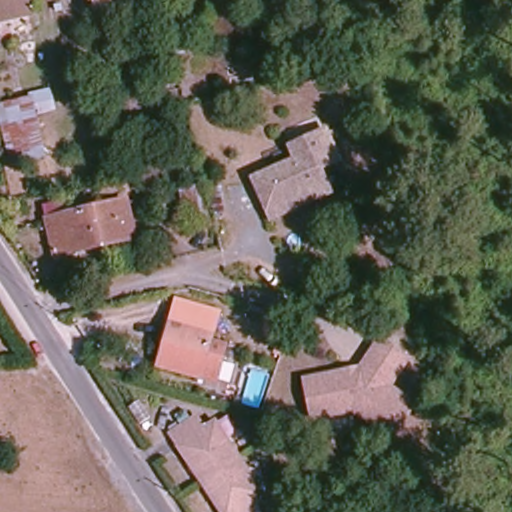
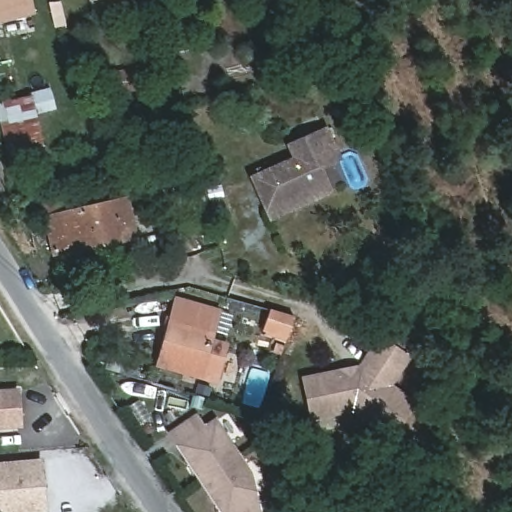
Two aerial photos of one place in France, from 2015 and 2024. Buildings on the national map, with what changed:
unchanged [(0,20),(0,0),(27,0),(30,14),(0,20)]
unchanged [(110,0),(112,10),(92,14),(89,0),(110,0)]
unchanged [(105,70),(137,64),(142,86),(110,94),(105,70)]
unchanged [(144,70),(150,69),(152,79),(146,81),(144,70)]
unchanged [(0,105),(47,94),(50,108),(31,112),(41,158),(10,164),(0,120),(0,105)]
unchanged [(139,103),(150,100),(153,114),(141,116),(139,103)]
unchanged [(94,108),(106,104),(110,123),(97,124),(94,108)]
unchanged [(86,159),(80,131),(93,129),(100,156),(86,159)]
unchanged [(267,222),(263,212),(250,182),(293,164),(288,151),(322,136),(334,165),(314,174),(320,188),(325,198),(267,222)]
unchanged [(182,189),(196,187),(203,217),(189,220),(182,189)]
unchanged [(67,250),(53,254),(45,219),(124,200),(133,239),(69,255),(67,250)]
unchanged [(180,298),(221,310),(213,338),(227,342),(217,377),(160,362),(180,298)]
unchanged [(290,319),(285,333),(256,325),(260,310),(290,319)]
unchanged [(300,377),(333,371),(342,374),(354,373),(379,338),(402,354),(403,360),(386,384),(411,402),(388,434),(348,408),(306,415),(300,377)]
new [(0,389),(18,388),(21,428),(0,429),(0,389)]
unchanged [(266,512),(220,512),(176,446),(201,429),(210,442),(220,434),(270,509),(266,512)]
new [(0,511),(0,462),(42,458),(46,512),(1,512),(0,511)]

